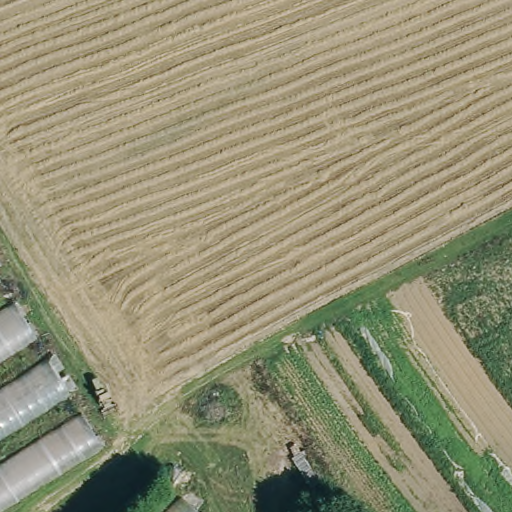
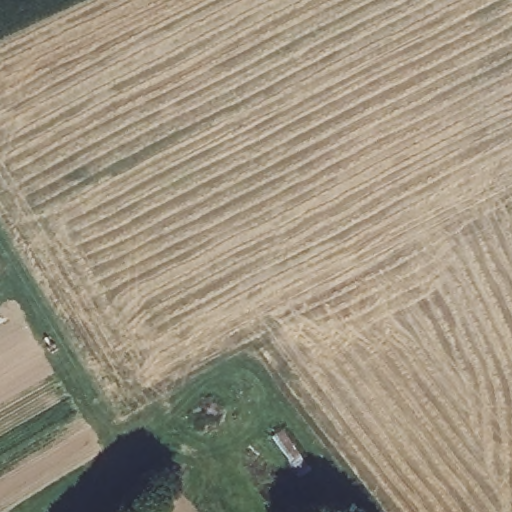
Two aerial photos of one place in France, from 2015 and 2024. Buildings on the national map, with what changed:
unchanged [(0,286),(0,278),(3,284),(0,286)]
demolished [(39,338),(0,363),(0,311),(17,300),(39,338)]
demolished [(72,395),(0,441),(0,390),(51,359),(72,395)]
demolished [(105,446),(1,512),(0,512),(0,464),(83,411),(105,446)]
demolished [(167,512),(180,497),(197,512),(167,512)]

